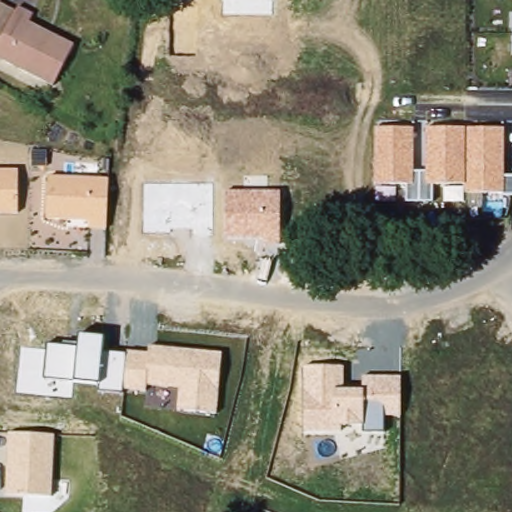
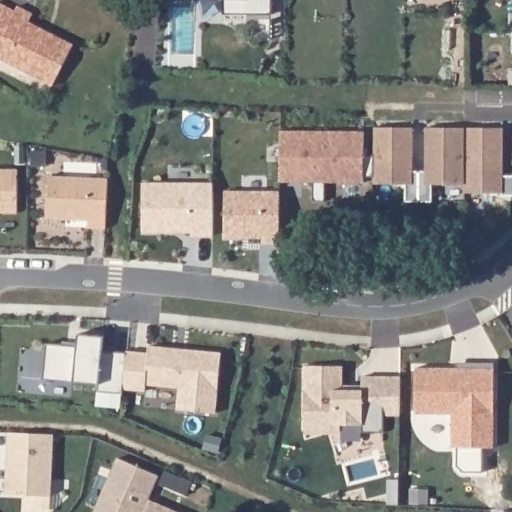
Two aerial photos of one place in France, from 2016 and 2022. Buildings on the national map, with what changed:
new [(274,15),(225,15),(225,0),(274,0),(274,15)]
new [(198,1),(196,55),(172,55),(171,1),(198,1)]
unchanged [(33,15),(29,24),(74,46),(54,87),(0,60),(0,4),(15,12),(18,7),(33,15)]
unchanged [(414,128),(414,172),(426,172),(426,129),(465,129),(504,129),(505,176),(512,176),(512,196),(502,196),(502,193),(464,193),(464,184),(432,185),(432,203),(407,202),(407,184),(376,184),(376,128),(414,128)]
new [(365,131),(365,184),(281,183),(282,131),(365,131)]
unchanged [(19,170),(18,213),(0,213),(0,170),(19,170)]
unchanged [(48,176),(109,179),(106,230),(87,229),(88,220),(47,220),(48,176)]
new [(144,234),(144,184),(214,185),(214,238),(193,238),(193,235),(172,234),(144,234)]
unchanged [(225,192),(281,192),(281,245),(262,245),(262,238),(225,238),(225,192)]
unchanged [(47,345),(78,348),(78,347),(79,335),(104,337),(103,353),(126,355),(127,351),(149,354),(150,347),(222,354),(217,414),(179,409),(180,388),(147,385),(146,392),(123,390),(122,393),(99,391),(100,384),(75,382),(44,378),(47,345)]
new [(457,371),(457,365),(466,365),(496,366),(495,451),(454,450),(454,417),(417,416),(417,371),(457,371)]
unchanged [(305,367),(344,367),(344,390),(361,391),(361,378),(401,378),(400,416),(384,417),(384,433),(362,433),(362,425),(340,426),(340,432),(305,431),(305,367)]
unchanged [(9,433),(55,436),(51,496),(7,495),(9,433)]
new [(160,479),(149,503),(145,512),(96,512),(118,461),(160,479)]
new [(171,512),(145,512),(149,503),(171,512)]

